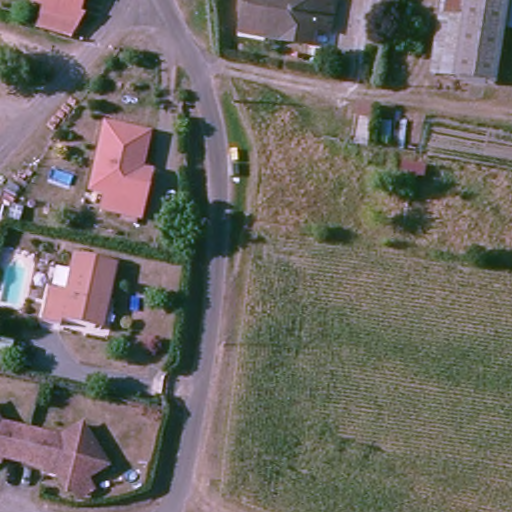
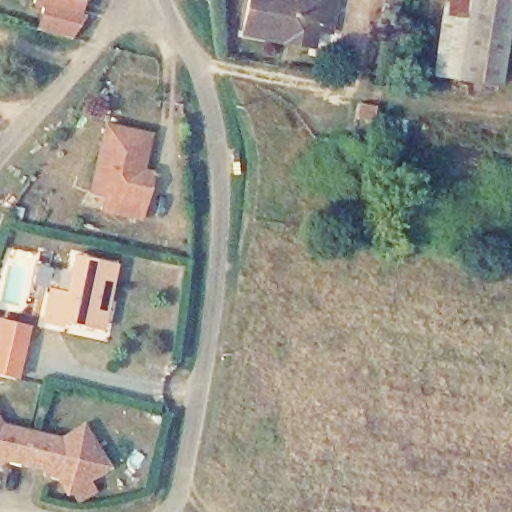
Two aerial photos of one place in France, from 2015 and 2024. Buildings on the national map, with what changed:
unchanged [(85,4),(70,28),(37,20),(42,0),(68,0),(83,3),(85,4)]
unchanged [(68,0),(83,0),(83,3),(68,0)]
unchanged [(242,31),(247,0),(338,0),(338,5),(334,24),(333,30),(316,27),(314,35),(312,44),(264,35),(242,31)]
unchanged [(381,1),(381,0),(399,0),(397,6),(381,1)]
unchanged [(444,0),(466,0),(454,79),(432,75),(444,0)]
unchanged [(509,31),(500,86),(454,79),(466,0),(512,0),(512,31),(509,31)]
unchanged [(146,199),(143,216),(106,207),(108,191),(95,188),(109,125),(150,134),(143,169),(153,171),(146,199)]
unchanged [(69,292),(76,256),(118,265),(111,300),(103,299),(96,330),(63,323),(61,326),(45,322),(52,289),(69,292)]
new [(20,380),(0,376),(0,318),(33,325),(20,380)]
unchanged [(69,483),(65,486),(56,472),(41,469),(42,463),(0,454),(0,422),(58,434),(79,421),(104,460),(84,474),(91,484),(76,493),(69,483)]

